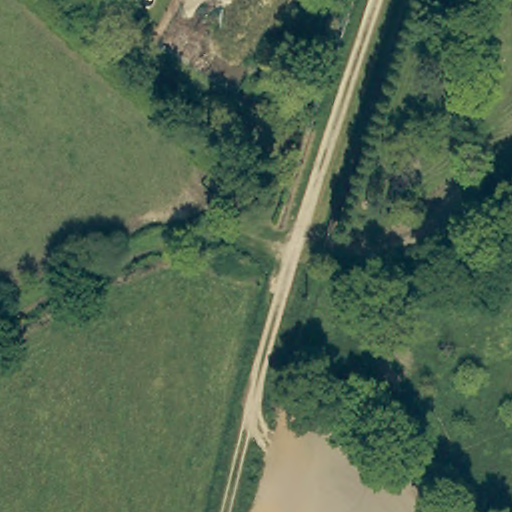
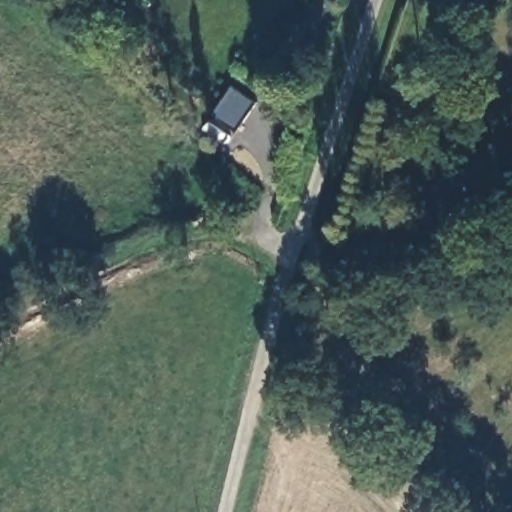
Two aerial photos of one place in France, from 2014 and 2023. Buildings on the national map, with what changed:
new [(257,104),(237,133),(212,117),(232,87),(257,104)]

